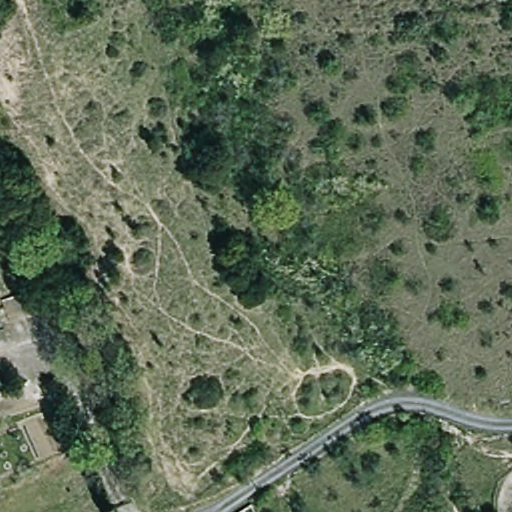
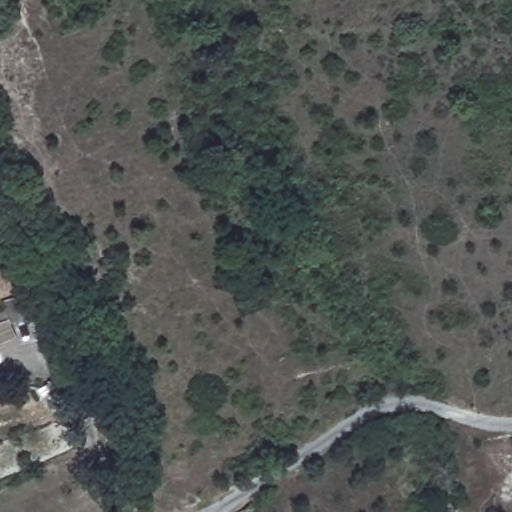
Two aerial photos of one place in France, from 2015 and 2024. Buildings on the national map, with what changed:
unchanged [(38,290),(45,313),(8,323),(2,299),(38,290)]

